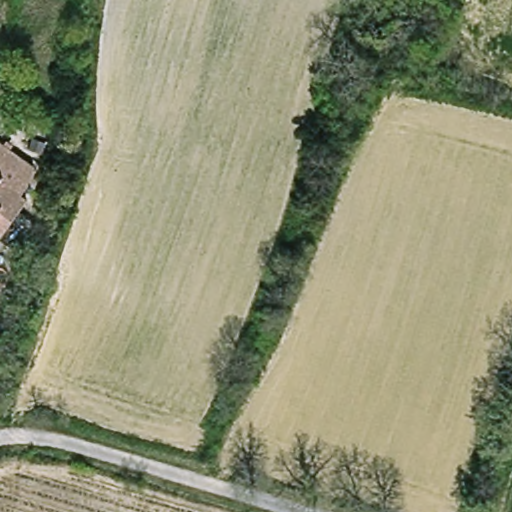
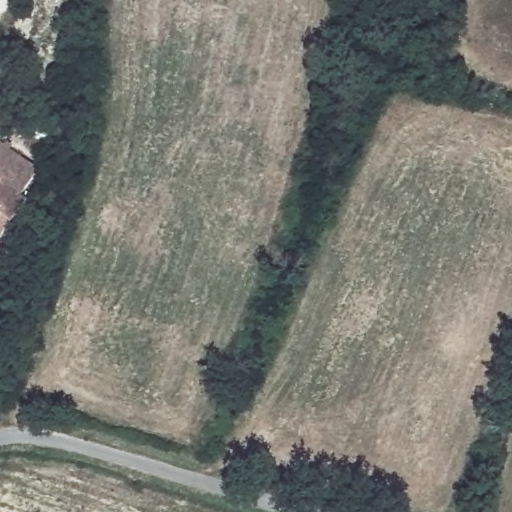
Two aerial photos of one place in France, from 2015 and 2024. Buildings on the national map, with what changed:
unchanged [(7,151),(23,160),(6,187),(30,202),(7,237),(0,247),(0,146),(7,151)]

